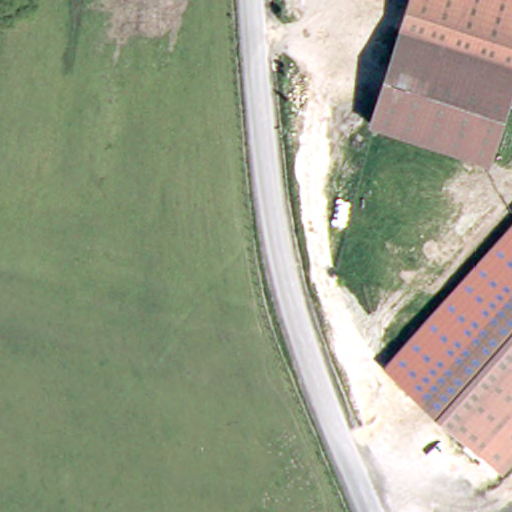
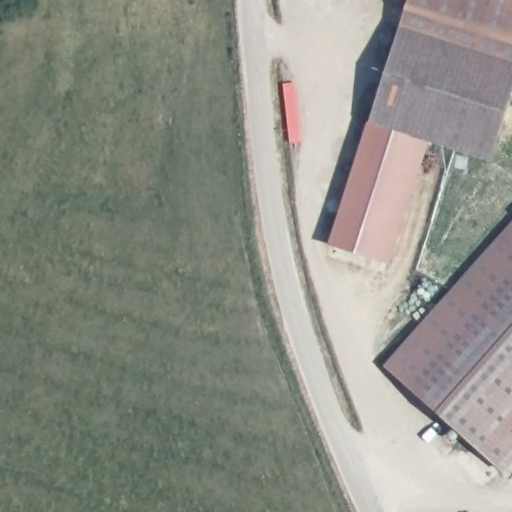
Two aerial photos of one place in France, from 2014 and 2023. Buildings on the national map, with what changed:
unchanged [(512,0),(512,65),(406,30),(416,0),(512,0)]
unchanged [(494,165),(375,125),(406,30),(512,65),(512,110),(494,165)]
new [(429,143),(389,264),(330,245),(375,125),(429,143)]
unchanged [(384,365),(512,220),(512,286),(415,394),(384,365)]
unchanged [(503,471),(415,394),(512,286),(512,461),(503,471)]

